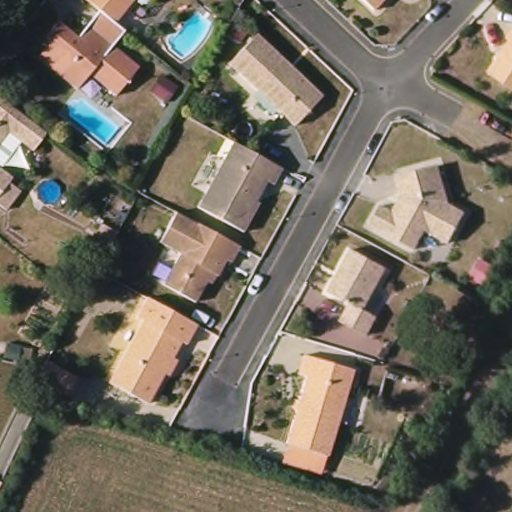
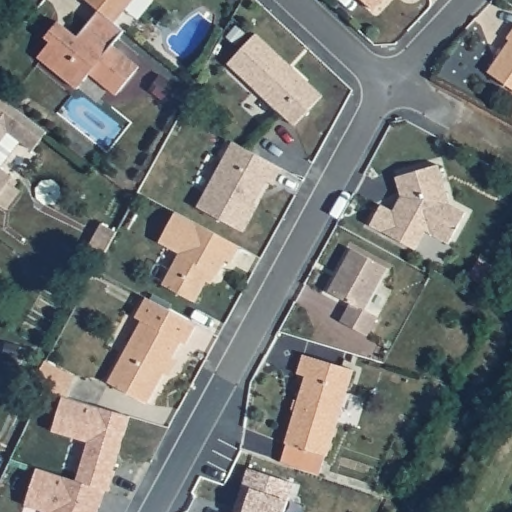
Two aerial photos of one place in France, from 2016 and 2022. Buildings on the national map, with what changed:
unchanged [(119,21),(103,8),(93,0),(137,0),(119,21)]
unchanged [(376,7),(369,0),(384,0),(376,7)]
unchanged [(82,88),(44,56),(56,41),(50,35),(59,25),(62,20),(74,29),(81,35),(103,8),(119,21),(129,29),(116,44),(142,66),(119,95),(105,83),(94,74),(82,88)]
unchanged [(325,97),(297,127),(231,64),(260,34),(325,97)]
unchanged [(511,36),(512,34),(512,37),(511,36)]
unchanged [(492,69),(512,40),(512,83),(492,69)]
unchanged [(164,77),(180,90),(167,106),(150,93),(164,77)]
unchanged [(14,150),(0,168),(0,111),(17,124),(40,141),(25,159),(14,150)]
unchanged [(285,165),(276,181),(266,175),(255,196),(262,200),(246,228),(201,204),(237,139),(285,165)]
unchanged [(451,205),(469,215),(452,245),(429,233),(419,252),(374,227),(385,207),(396,214),(405,200),(405,198),(400,179),(442,167),(452,203),(451,205)]
unchanged [(4,191),(15,200),(1,217),(0,216),(0,182),(7,187),(4,191)]
unchanged [(233,265),(229,263),(221,277),(215,274),(199,304),(166,287),(185,253),(164,242),(180,214),(235,244),(242,248),(233,265)]
unchanged [(109,245),(100,261),(86,253),(94,238),(109,245)]
unchanged [(390,265),(367,307),(381,315),(371,333),(345,319),(355,301),(332,289),(355,246),(390,265)]
unchanged [(189,341),(184,339),(150,400),(111,379),(145,317),(139,314),(150,295),(200,322),(189,341)]
unchanged [(318,471),(292,463),(284,461),(290,442),(309,378),(301,376),(307,357),(356,372),(332,454),(330,454),(325,468),(324,473),(318,471)]
demolished [(74,376),(67,397),(44,390),(41,369),(45,361),(74,376)]
new [(44,390),(41,369),(45,361),(74,376),(67,397),(44,390)]
new [(52,430),(62,396),(67,397),(129,416),(108,489),(104,488),(96,512),(50,512),(25,504),(36,468),(75,481),(87,441),(52,430)]
new [(248,468),(294,483),(284,512),(234,512),(242,486),(248,468)]

